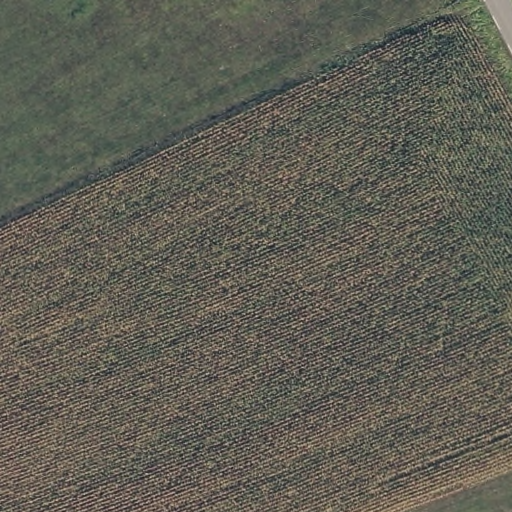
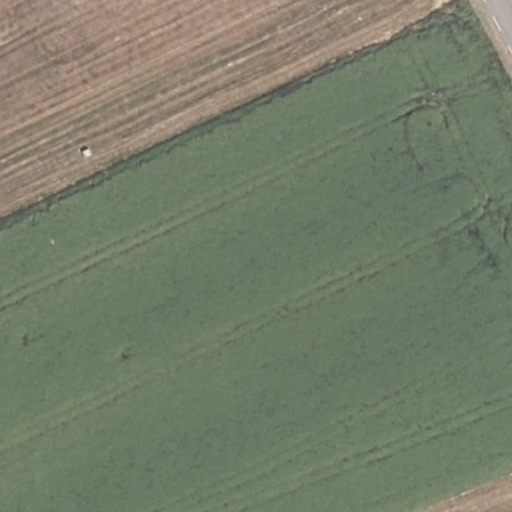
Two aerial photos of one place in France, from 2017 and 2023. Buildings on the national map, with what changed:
[]

